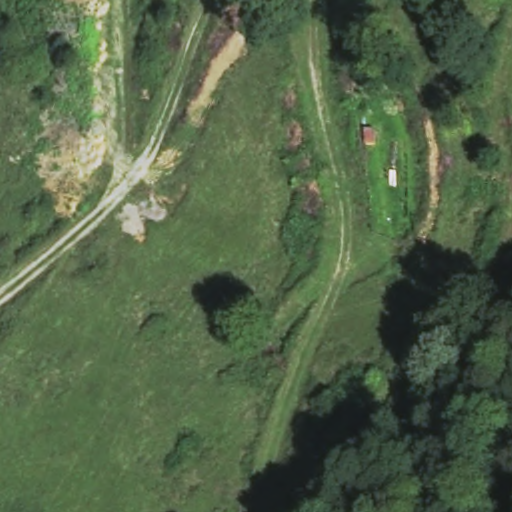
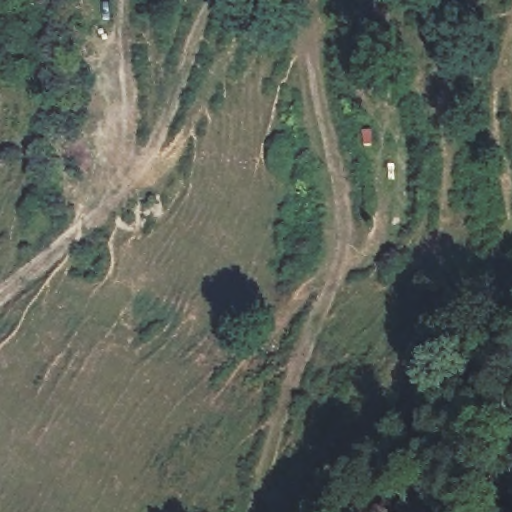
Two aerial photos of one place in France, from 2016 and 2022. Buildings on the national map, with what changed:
[]

